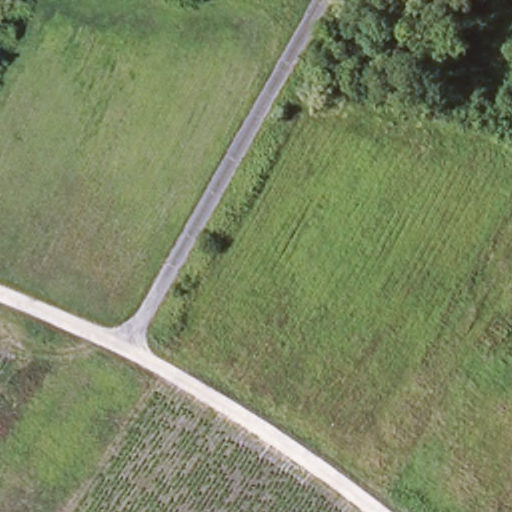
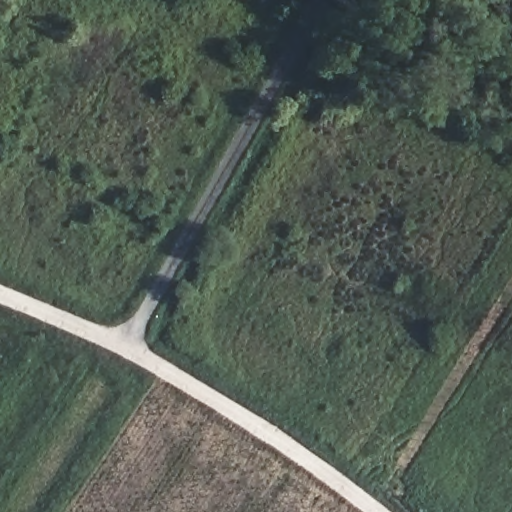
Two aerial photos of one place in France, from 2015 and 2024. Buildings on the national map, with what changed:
[]

